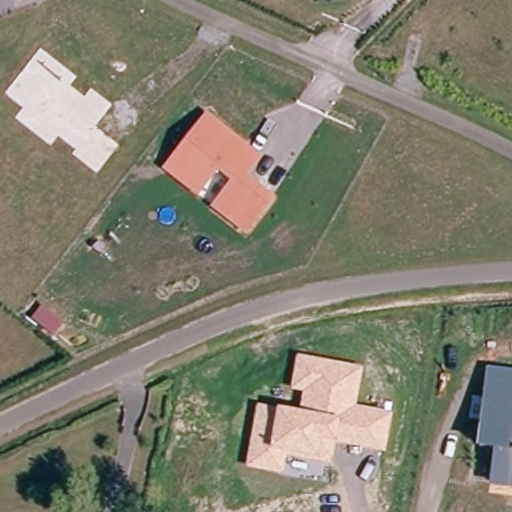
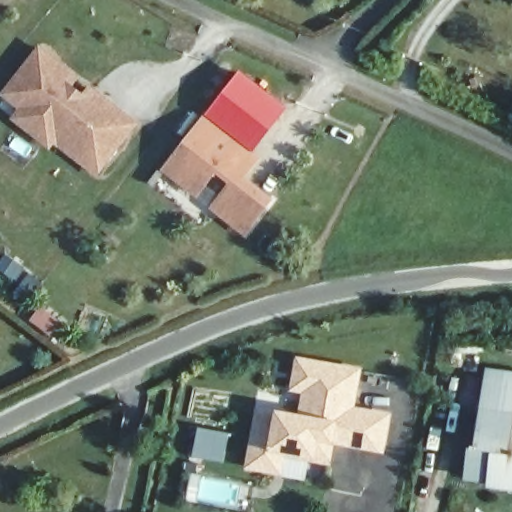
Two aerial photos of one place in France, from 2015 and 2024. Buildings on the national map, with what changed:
new [(97,177),(55,144),(50,149),(11,118),(19,108),(0,95),(40,43),(82,76),(76,83),(85,90),(90,83),(141,122),(97,177)]
new [(240,70),(290,108),(255,151),(208,114),(240,70)]
unchanged [(229,182),(216,171),(198,197),(162,170),(205,112),(261,155),(246,175),(272,196),(244,235),(210,207),(229,182)]
unchanged [(276,409),(299,412),(302,392),(290,390),(296,354),(362,366),(355,405),(392,413),(385,453),(335,445),(332,465),(286,457),(282,475),(244,468),(255,405),(276,409)]
unchanged [(512,487),(491,483),(495,450),(480,447),(481,426),(490,371),(512,375),(512,487)]

